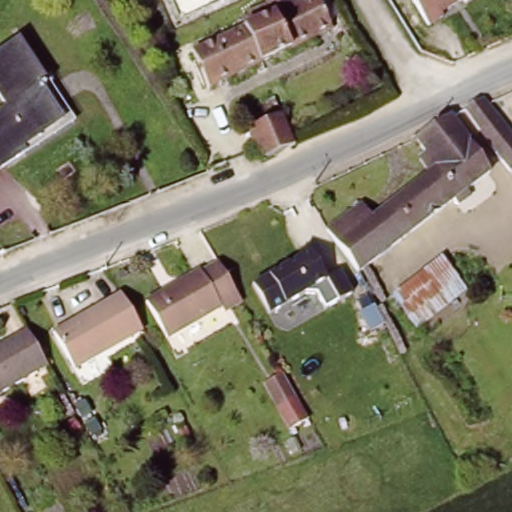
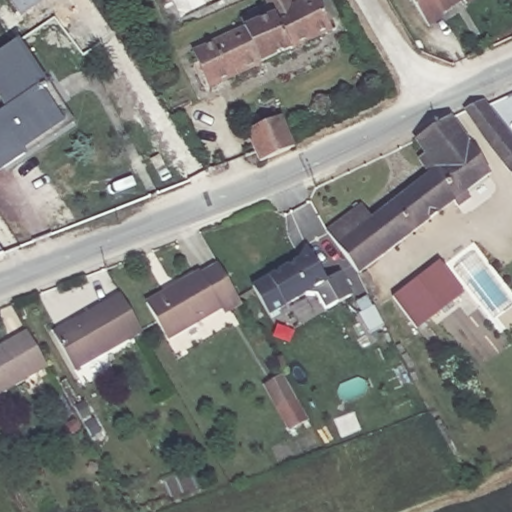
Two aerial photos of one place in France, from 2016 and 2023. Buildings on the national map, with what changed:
unchanged [(327,34),(285,55),(262,7),(259,2),(263,0),(281,0),(287,11),(310,0),(327,34)]
unchanged [(445,3),(449,7),(437,15),(428,0),(451,0),(445,3)]
unchanged [(253,70),(205,92),(189,57),(240,32),(235,20),(262,7),(285,55),(253,70)]
unchanged [(20,149),(22,154),(0,168),(0,111),(5,107),(0,99),(0,52),(10,46),(17,42),(45,86),(37,90),(60,125),(20,149)]
unchanged [(512,183),(480,142),(460,114),(479,105),(512,147),(512,183)]
unchanged [(256,162),(243,131),(239,120),(250,116),(254,127),(277,117),(290,148),(256,162)]
unchanged [(487,171),(355,272),(322,229),(353,209),(362,222),(434,166),(412,137),(445,116),(487,171)]
unchanged [(327,276),(342,270),(354,293),(325,307),(315,287),(267,314),(250,282),(292,260),(307,243),(327,276)]
unchanged [(467,290),(412,331),(385,298),(442,253),(467,290)]
unchanged [(232,295),(213,305),(215,310),(162,340),(140,300),(193,270),(191,266),(210,256),(232,295)]
unchanged [(137,335),(67,374),(47,337),(116,298),(137,335)]
unchanged [(46,366),(0,393),(0,345),(25,330),(46,366)]
unchanged [(262,385),(283,373),(309,419),(287,430),(262,385)]

